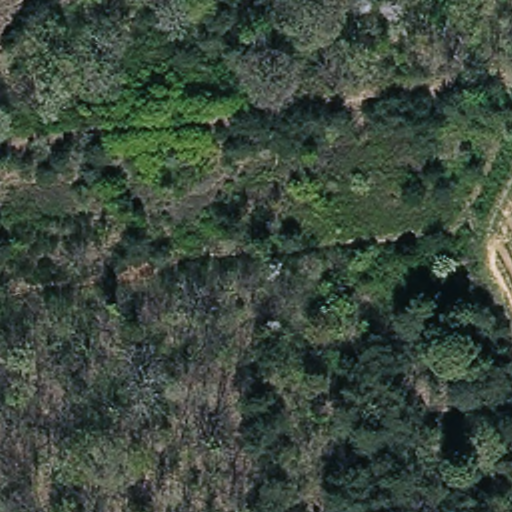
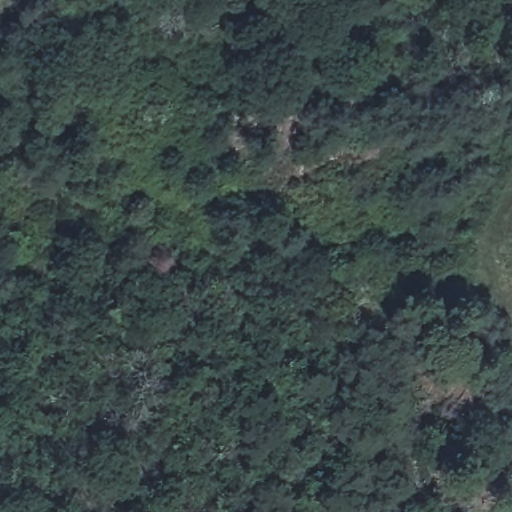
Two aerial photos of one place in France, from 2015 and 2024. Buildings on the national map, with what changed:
[]

